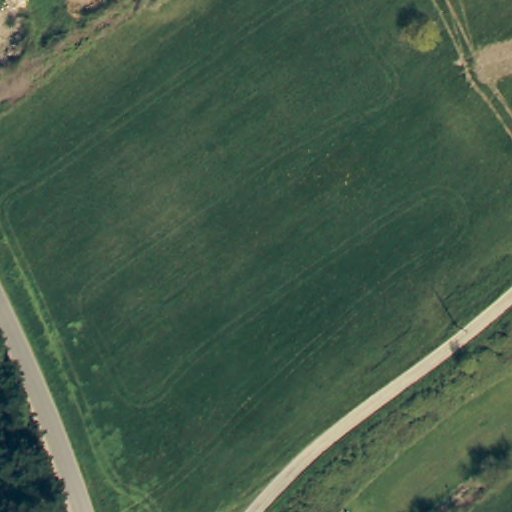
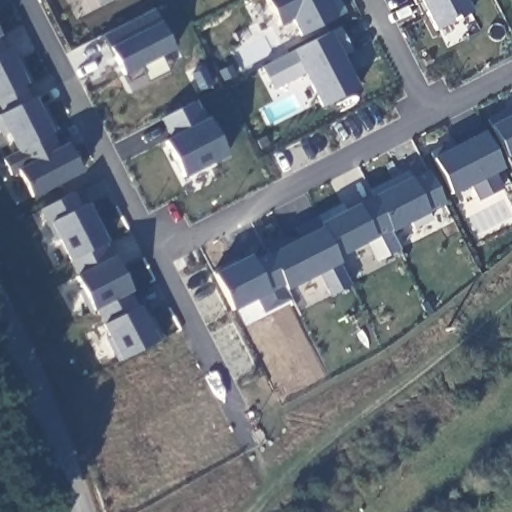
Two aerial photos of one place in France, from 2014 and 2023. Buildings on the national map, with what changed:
new [(292,16),(279,23),(267,0),(339,0),(345,11),(301,34),(292,16)]
new [(414,0),(422,0),(416,2),(414,0)]
new [(422,0),(466,0),(472,11),(437,29),(422,0)]
new [(142,68),(139,63),(123,70),(109,47),(137,33),(131,20),(153,9),(160,21),(176,52),(142,68)]
new [(323,108),(305,74),(273,90),(260,66),(293,49),(331,30),(340,25),(352,50),(344,55),(361,87),(323,108)]
new [(18,173),(12,175),(4,156),(17,150),(0,115),(0,32),(29,84),(23,87),(31,100),(36,96),(61,146),(67,143),(82,171),(31,199),(18,173)]
new [(185,177),(165,140),(172,135),(160,120),(196,99),(210,117),(229,156),(185,177)]
new [(489,119),(512,107),(512,155),(508,156),(489,119)]
new [(497,172),(505,187),(480,200),(471,184),(453,193),(434,157),(485,130),(505,170),(497,172)]
new [(429,211),(432,217),(412,226),(410,222),(393,230),(400,248),(376,259),(365,239),(335,254),(339,263),(350,284),(329,295),(318,273),(287,288),(270,253),(266,246),(288,235),(292,240),(301,236),(296,225),(316,216),(343,202),(348,209),(372,197),(367,187),(404,170),(409,179),(428,170),(444,204),(429,211)]
new [(71,259),(60,237),(57,238),(41,207),(74,190),(81,205),(87,202),(107,241),(106,241),(71,259)]
new [(123,360),(78,275),(69,260),(105,241),(115,256),(159,339),(123,360)]
new [(237,258),(238,261),(251,254),(254,259),(268,252),(287,288),(291,296),(265,310),(258,295),(233,308),(213,270),(237,258)]

